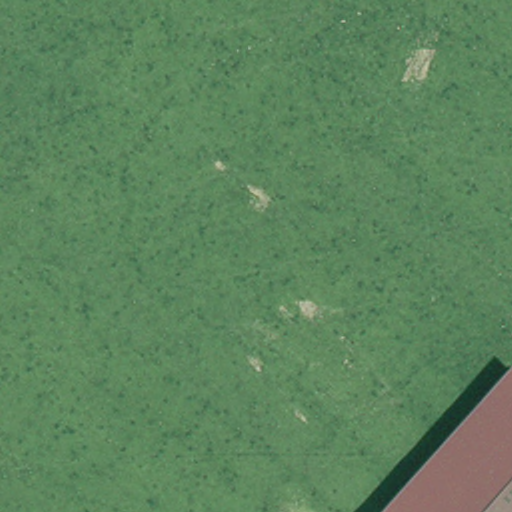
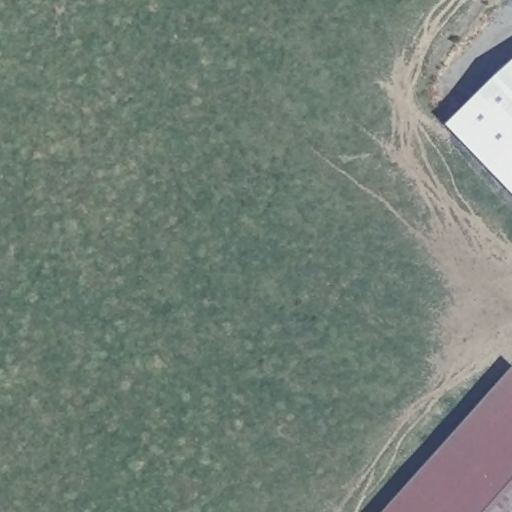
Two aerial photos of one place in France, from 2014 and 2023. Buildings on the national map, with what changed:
new [(512,179),(457,121),(512,67),(512,179)]
unchanged [(385,512),(512,369),(512,489),(491,512),(385,512)]
unchanged [(512,512),(491,512),(512,489),(512,512)]

